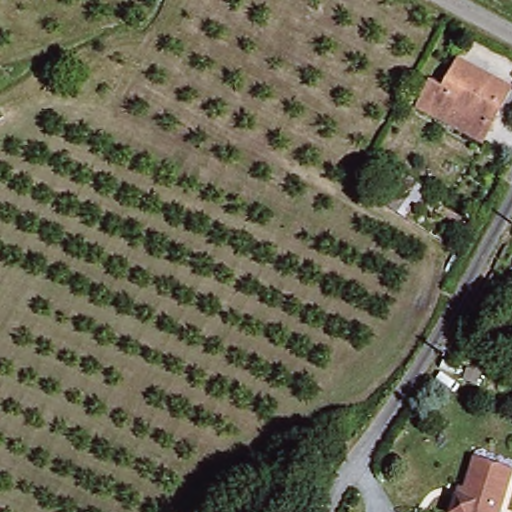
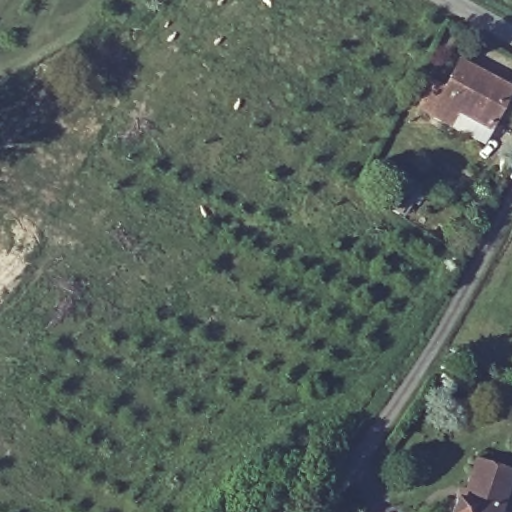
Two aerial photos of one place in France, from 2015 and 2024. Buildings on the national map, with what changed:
unchanged [(416,102),(431,76),(445,84),(464,54),(512,81),(490,120),(479,140),(446,120),(416,102)]
unchanged [(396,162),(413,173),(395,202),(378,192),(396,162)]
unchanged [(462,488),(474,457),(511,470),(496,512),(447,512),(457,486),(462,488)]

